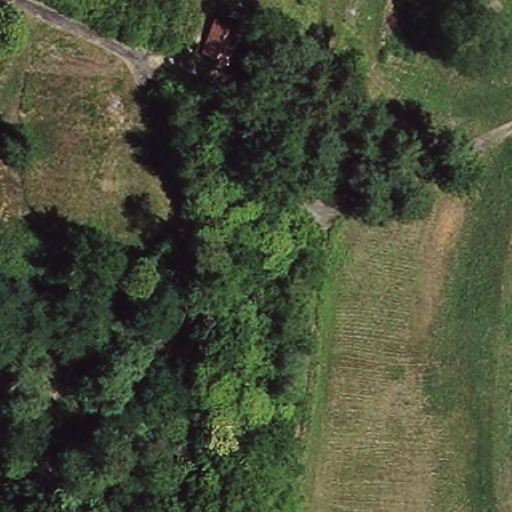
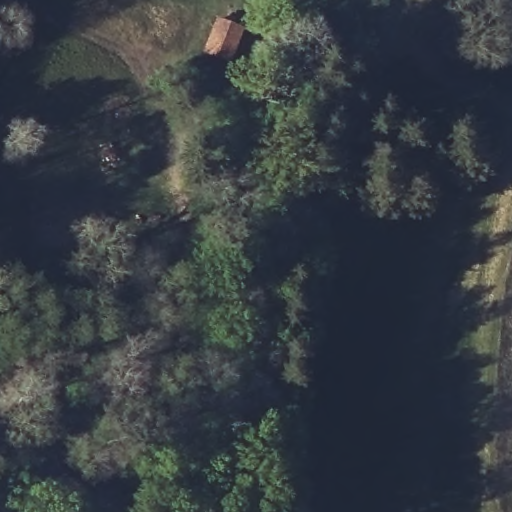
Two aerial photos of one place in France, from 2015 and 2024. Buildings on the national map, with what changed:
unchanged [(226,57),(207,54),(210,42),(228,47),(226,57)]

